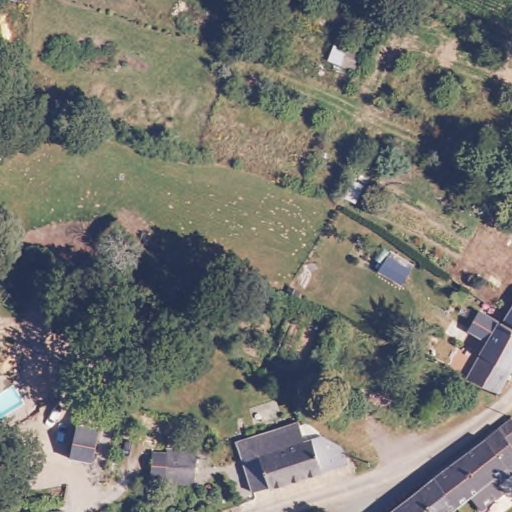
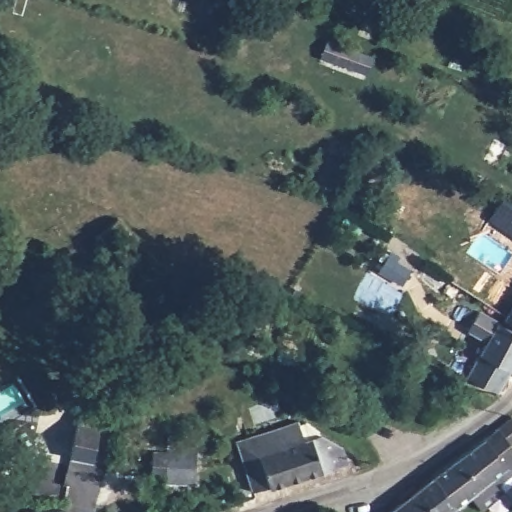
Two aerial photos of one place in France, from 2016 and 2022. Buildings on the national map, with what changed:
unchanged [(334,37),(350,41),(353,32),(376,39),(366,73),(328,60),(334,37)]
unchanged [(160,235),(139,250),(124,236),(140,218),(160,235)]
unchanged [(504,311),(512,297),(512,317),(504,311)]
unchanged [(465,371),(486,335),(470,325),(480,308),(512,326),(512,366),(499,389),(465,371)]
unchanged [(91,421),(94,402),(120,404),(118,423),(117,426),(112,458),(102,456),(87,454),(89,443),(91,421)]
unchanged [(308,434),(324,428),(334,434),(344,458),(324,466),(268,488),(252,494),(231,447),(240,444),(300,420),(308,434)]
unchanged [(512,440),(512,472),(511,473),(506,468),(495,478),(504,489),(481,508),(469,495),(457,504),(434,474),(483,435),(499,424),(512,440)]
unchanged [(214,458),(212,486),(184,485),(184,458),(214,458)]
unchanged [(386,512),(434,474),(457,504),(446,512),(386,512)]

